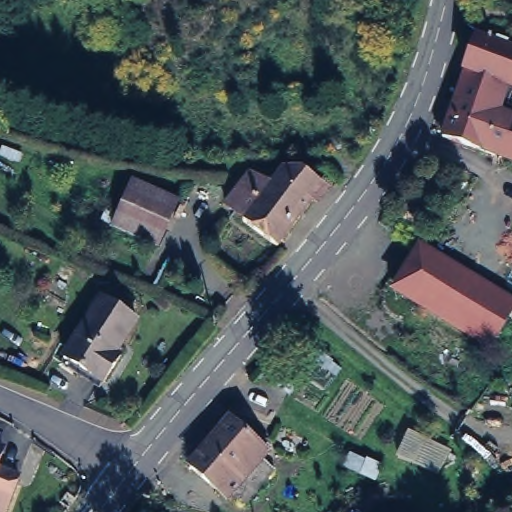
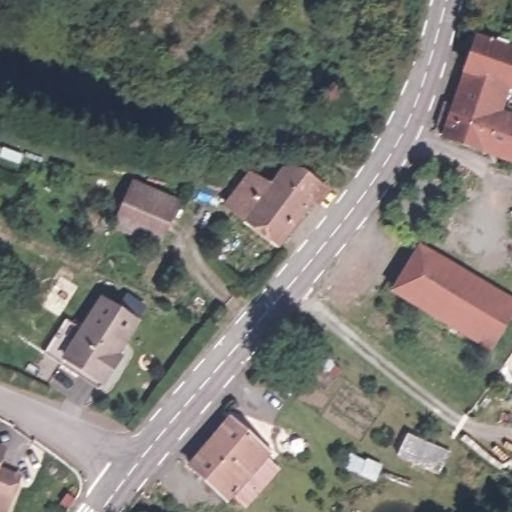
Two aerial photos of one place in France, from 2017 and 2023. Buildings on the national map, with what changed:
unchanged [(512,45),(512,156),(445,135),(480,34),(512,45)]
unchanged [(252,173),(270,188),(283,169),(300,167),(323,187),(275,249),(243,224),(247,218),(229,203),(248,173),(252,173)]
unchanged [(175,197),(147,242),(125,227),(149,182),(175,197)]
unchanged [(512,307),(512,340),(500,358),(392,292),(415,252),(512,307)]
unchanged [(115,367),(102,383),(61,355),(102,298),(135,321),(115,351),(122,354),(115,367)]
unchanged [(190,467),(230,418),(272,456),(227,506),(190,467)]
unchanged [(0,461),(0,453),(3,454),(0,461)]
unchanged [(6,512),(0,512),(0,470),(18,480),(6,512)]
unchanged [(67,494),(87,508),(84,512),(66,512),(58,506),(67,494)]

